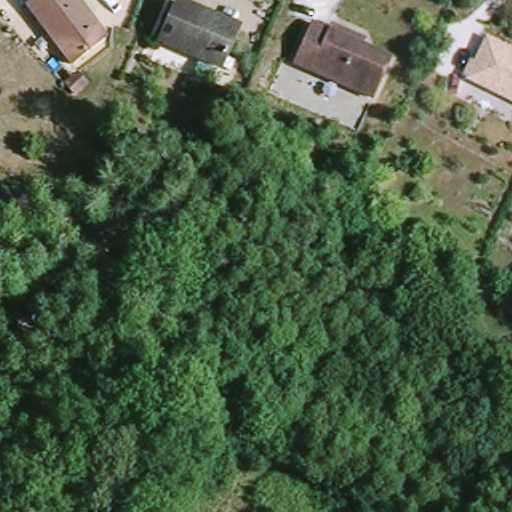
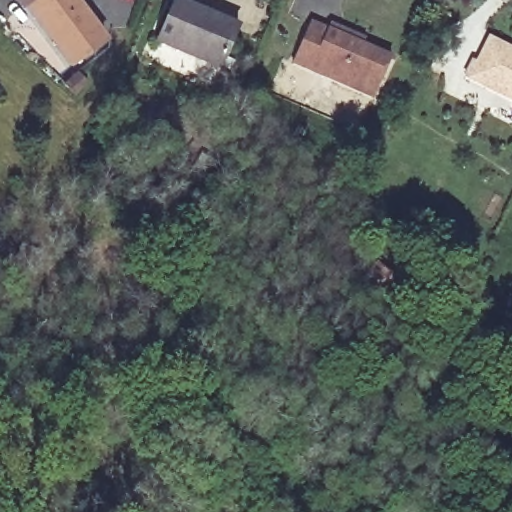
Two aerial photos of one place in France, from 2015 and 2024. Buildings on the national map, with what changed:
unchanged [(103,43),(70,69),(24,9),(36,0),(70,0),(103,43)]
unchanged [(237,36),(220,77),(158,51),(176,10),(237,36)]
unchanged [(376,105),(296,67),(314,29),(331,37),(333,32),(353,41),(355,48),(354,50),(363,55),(364,52),(394,66),(376,105)]
unchanged [(477,64),(482,66),(491,47),(494,43),(512,52),(512,101),(470,79),(477,64)]

